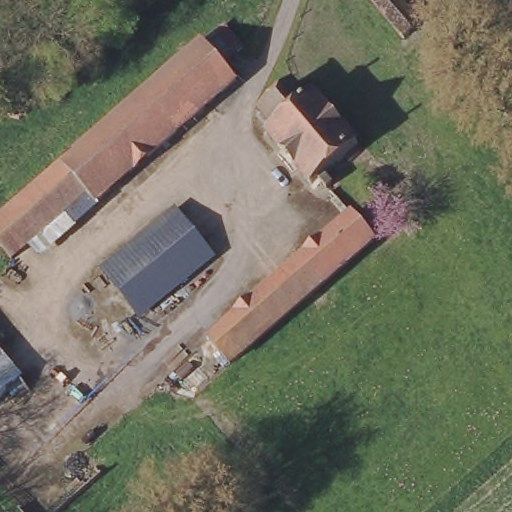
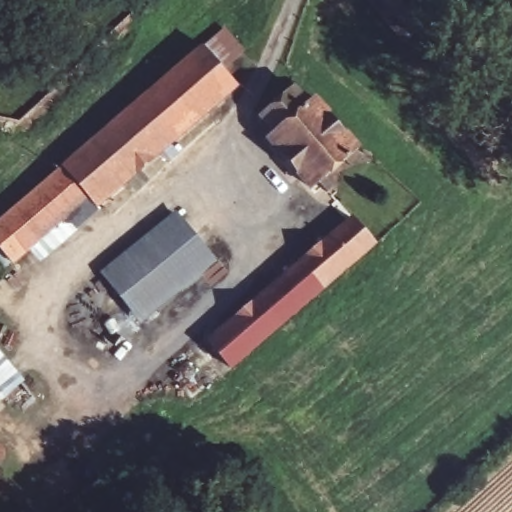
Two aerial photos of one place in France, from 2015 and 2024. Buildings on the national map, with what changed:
unchanged [(409,35),(379,0),(410,0),(427,20),(409,35)]
unchanged [(95,196),(88,189),(62,161),(203,39),(222,23),(241,45),(223,61),(237,76),(95,196)]
unchanged [(293,83),(310,101),(316,97),(357,145),(324,173),(332,184),(325,191),(320,185),(315,189),(297,168),(292,171),(277,154),(282,148),(268,130),(273,125),(260,110),(293,83)]
unchanged [(12,254),(0,240),(0,213),(62,161),(88,189),(12,254)]
unchanged [(205,339),(220,326),(360,204),(385,230),(245,354),(230,367),(205,339)]
unchanged [(180,205),(219,251),(145,312),(105,266),(180,205)]
unchanged [(0,405),(0,346),(30,382),(0,405)]

